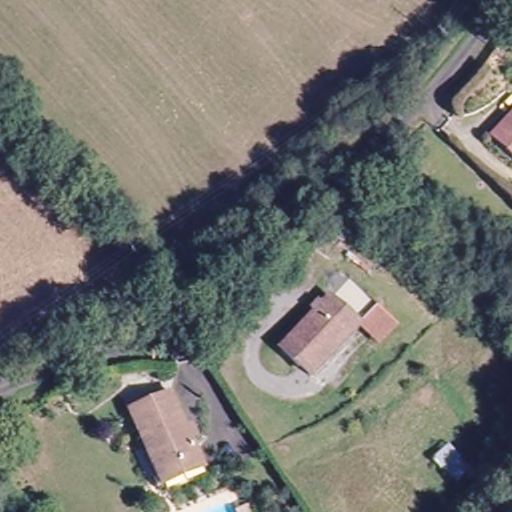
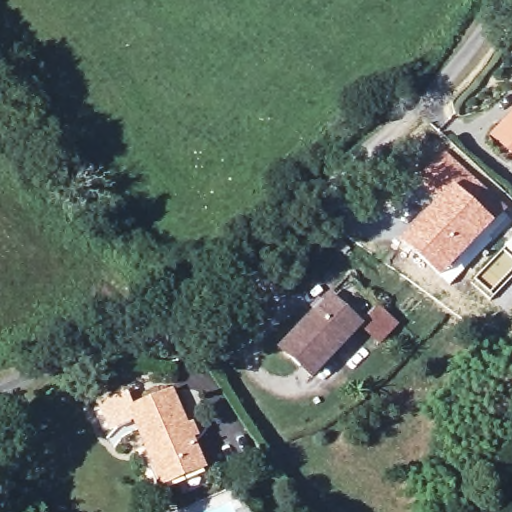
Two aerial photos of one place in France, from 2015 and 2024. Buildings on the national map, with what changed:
unchanged [(495,137),(512,119),(512,152),(495,137)]
new [(439,198),(464,177),(486,194),(475,204),(495,225),(441,282),(398,242),(439,198)]
new [(512,239),(512,252),(505,246),(512,239)]
unchanged [(335,351),(312,372),(284,345),(334,296),(358,318),(363,323),(335,351)]
unchanged [(163,486),(158,475),(131,412),(172,394),(199,457),(203,468),(163,486)]

